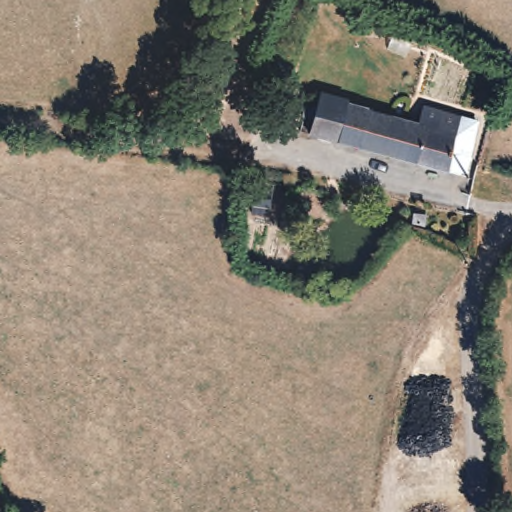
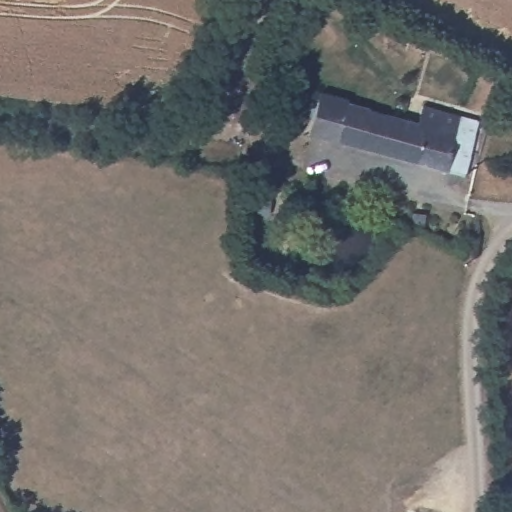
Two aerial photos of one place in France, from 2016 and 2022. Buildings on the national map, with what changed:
unchanged [(343,98),(331,141),(305,135),(315,101),(317,92),(343,98)]
unchanged [(389,111),(388,117),(424,126),(429,107),(473,120),(457,174),(331,141),(343,98),(389,111)]
unchanged [(425,217),(425,230),(408,231),(408,218),(425,217)]
unchanged [(470,252),(470,266),(457,260),(454,249),(470,252)]

